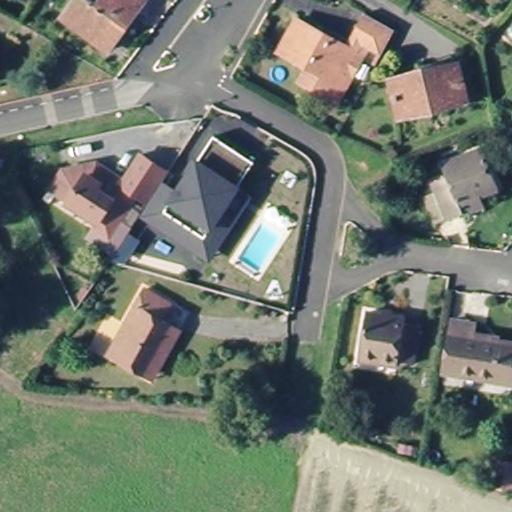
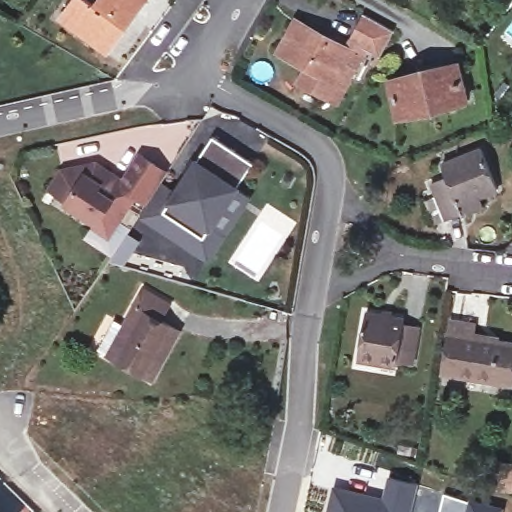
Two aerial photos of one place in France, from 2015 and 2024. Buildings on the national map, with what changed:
unchanged [(66,22),(83,0),(87,0),(101,10),(109,0),(152,0),(111,55),(66,22)]
unchanged [(377,69),(363,60),(336,110),(297,88),(305,73),(280,59),(299,25),(349,53),(352,48),(347,45),(362,16),(395,34),(377,69)]
unchanged [(458,66),(468,103),(400,122),(390,84),(458,66)]
unchanged [(252,167),(235,191),(191,253),(138,214),(149,199),(159,184),(174,194),(212,139),(252,167)]
unchanged [(169,170),(159,184),(149,199),(136,190),(114,222),(101,212),(98,216),(68,195),(69,193),(52,182),(66,162),(97,157),(99,157),(125,176),(144,149),(170,168),(169,170)]
unchanged [(459,216),(441,224),(425,184),(438,179),(434,168),(478,150),(493,188),(476,195),(481,208),(459,216)]
unchanged [(247,200),(204,261),(191,253),(235,191),(247,200)]
unchanged [(157,381),(150,377),(118,360),(111,356),(126,328),(147,290),(173,304),(164,319),(178,327),(185,331),(157,381)]
unchanged [(452,307),(484,312),(478,346),(512,353),(512,382),(510,394),(439,382),(452,307)]
unchanged [(367,315),(400,320),(399,326),(413,328),(408,362),(395,360),(393,367),(360,362),(367,315)]
new [(334,484),(383,496),(390,474),(421,482),(413,512),(327,512),(334,484)]
new [(35,512),(5,512),(14,502),(0,486),(0,480),(35,512)]
new [(445,492),(505,506),(504,512),(439,512),(445,492)]

